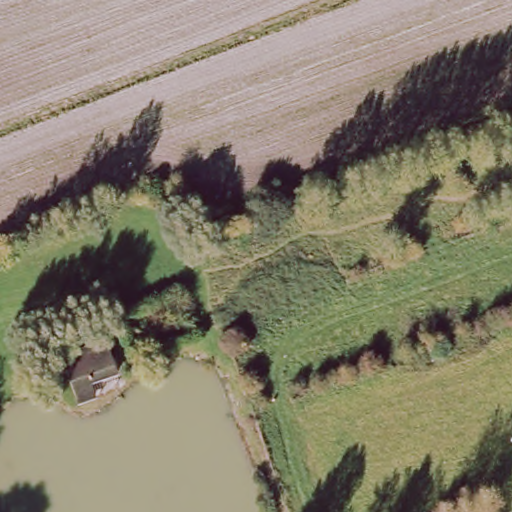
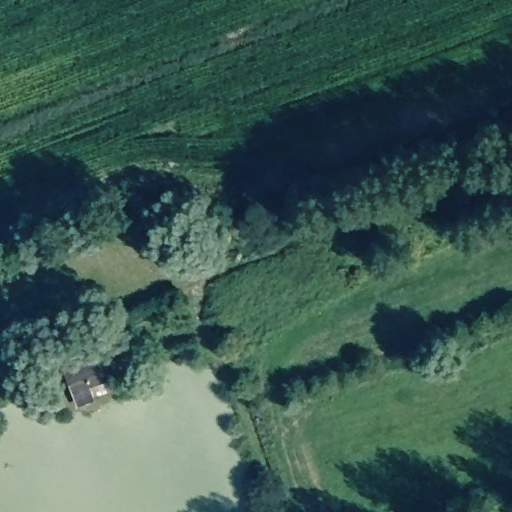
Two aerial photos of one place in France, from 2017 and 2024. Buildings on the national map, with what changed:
unchanged [(65,363),(106,347),(114,367),(121,391),(81,404),(72,379),(65,363)]

